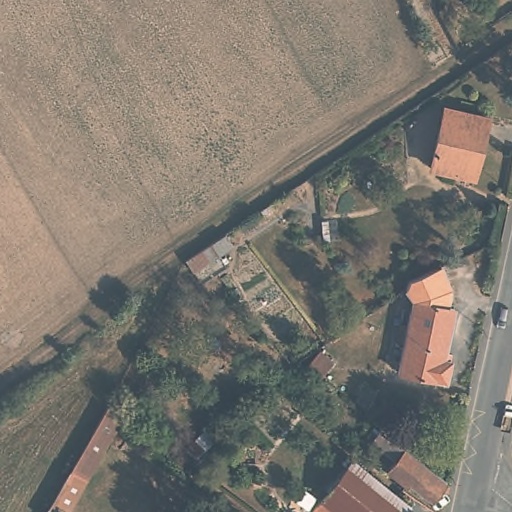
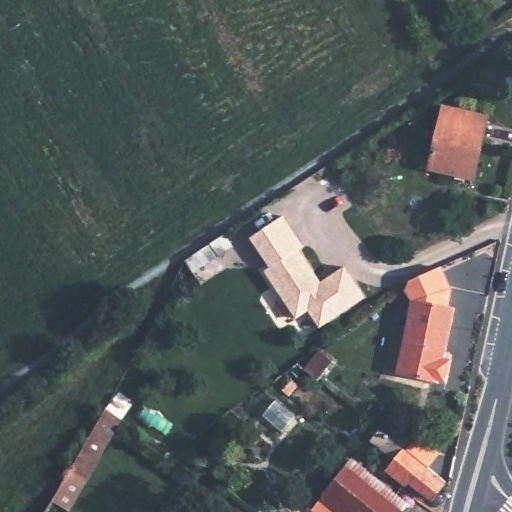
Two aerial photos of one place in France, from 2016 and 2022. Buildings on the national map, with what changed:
unchanged [(481,123),(467,183),(426,174),(439,114),(481,123)]
new [(282,213),(304,244),(299,247),(321,281),(345,265),(365,297),(320,328),(309,310),(295,319),(262,270),(269,266),(249,237),(282,213)]
unchanged [(450,289),(447,309),(414,304),(405,291),(408,280),(441,265),(450,289)]
unchanged [(414,304),(447,309),(450,310),(439,358),(448,360),(443,382),(394,372),(409,303),(414,304)]
unchanged [(269,387),(296,365),(301,368),(315,353),(329,363),(316,385),(306,378),(296,391),(286,404),(269,387)]
unchanged [(106,401),(124,414),(63,512),(42,512),(40,510),(106,401)]
unchanged [(406,481),(402,486),(385,472),(395,460),(368,437),(374,429),(444,482),(430,499),(406,481)]
unchanged [(314,510),(321,501),(349,464),(408,508),(405,512),(316,512),(314,510)]

